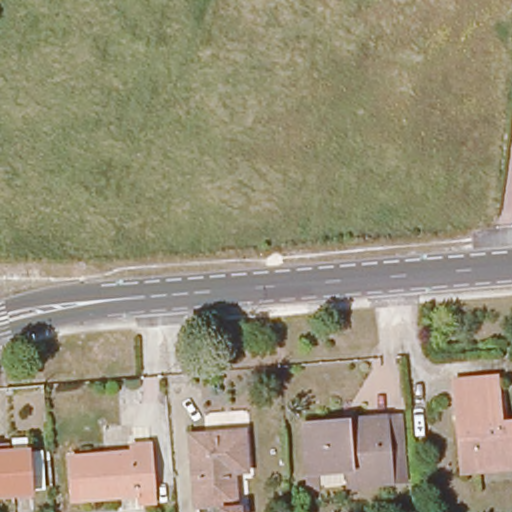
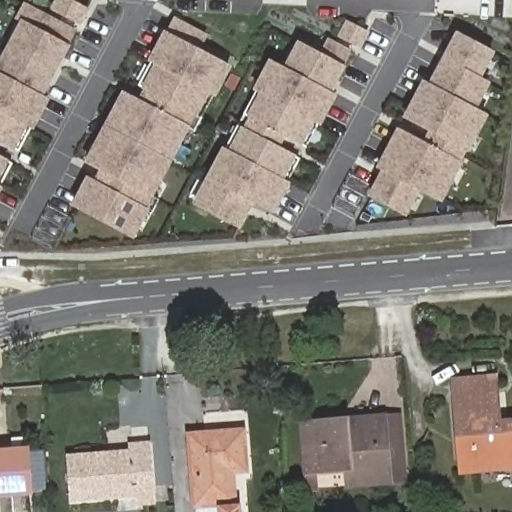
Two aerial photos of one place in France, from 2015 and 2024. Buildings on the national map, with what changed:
new [(55,0),(73,0),(75,1),(91,9),(81,26),(66,18),(50,9),(55,0)]
new [(20,23),(15,19),(24,2),(77,30),(69,45),(71,46),(44,96),(51,99),(34,131),(31,129),(19,152),(16,150),(16,151),(0,143),(0,60),(20,23)]
new [(195,130),(190,128),(173,161),(154,197),(159,199),(152,213),(150,212),(135,239),(103,223),(71,206),(87,176),(94,180),(99,170),(84,163),(104,125),(123,90),(139,99),(144,90),(141,89),(142,88),(139,86),(151,63),(148,61),(164,30),(166,31),(174,16),(209,34),(201,50),(233,67),(217,98),(213,96),(195,130)]
new [(337,36),(346,19),(359,25),(370,31),(361,49),(350,43),(337,36)]
new [(490,115),(469,154),(467,153),(462,161),(464,163),(443,204),(421,192),(407,218),(387,207),(368,197),(381,171),(376,168),(398,128),(424,141),(429,132),(403,118),(423,80),(429,83),(457,31),(477,42),(496,53),(483,78),(492,83),(478,109),(490,115)]
new [(306,148),(303,146),(302,147),(286,138),(281,148),(297,156),(297,158),(299,159),(287,181),(291,184),(275,214),(255,204),(241,229),(217,217),(192,204),(223,147),(226,149),(257,91),(253,89),(270,59),(284,66),(298,41),(320,53),(328,38),(352,50),(344,65),(347,67),(333,93),(338,95),(322,126),(318,124),(306,148)]
new [(12,164),(1,186),(4,188),(0,195),(0,155),(10,160),(10,163),(12,164)]
unchanged [(500,422),(512,421),(512,468),(462,472),(454,380),(495,376),(500,422)]
unchanged [(405,416),(411,481),(395,483),(390,417),(405,416)]
unchanged [(311,473),(307,424),(390,417),(395,483),(357,486),(356,469),(311,473)]
unchanged [(239,512),(199,512),(198,506),(195,506),(190,434),(244,431),(246,471),(234,472),(236,508),(239,507),(239,512)]
unchanged [(73,501),(69,458),(131,452),(131,445),(149,444),(152,490),(137,492),(137,496),(73,501)]
unchanged [(28,450),(32,494),(0,496),(0,452),(28,450)]

